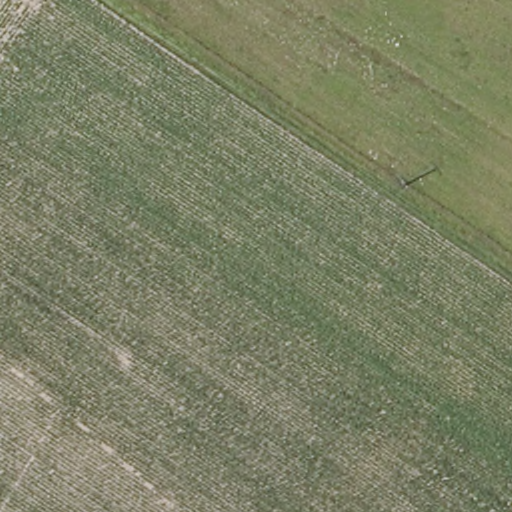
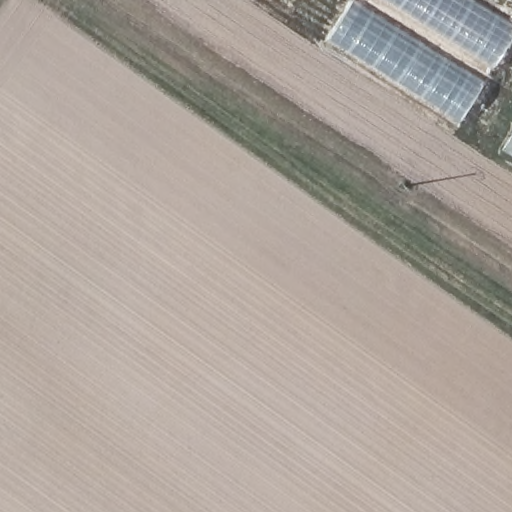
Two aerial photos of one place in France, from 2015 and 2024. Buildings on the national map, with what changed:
new [(494,69),(385,0),(471,0),(512,26),(512,38),(494,69)]
new [(325,43),(353,1),(484,84),(457,126),(325,43)]
new [(500,151),(512,131),(512,158),(500,151)]

